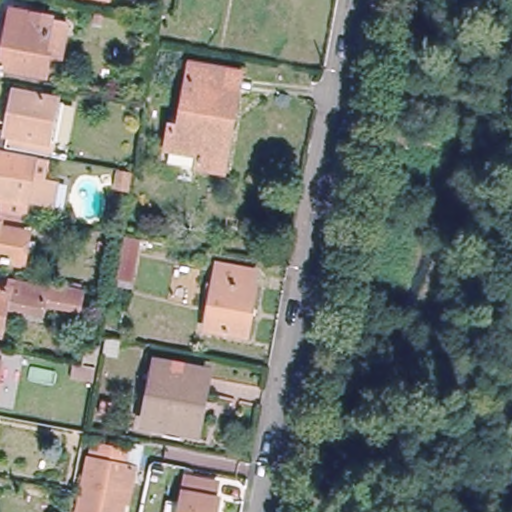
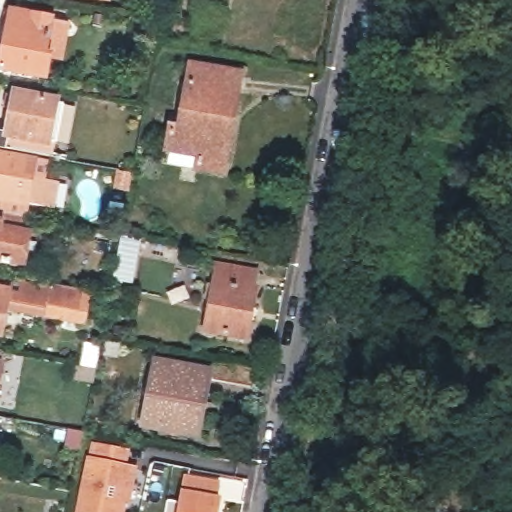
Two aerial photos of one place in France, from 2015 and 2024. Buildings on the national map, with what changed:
unchanged [(56,23),(49,58),(37,56),(32,78),(0,72),(0,13),(39,20),(56,23)]
unchanged [(187,161),(190,148),(159,142),(163,120),(176,122),(187,61),(235,70),(217,166),(187,161)]
unchanged [(55,145),(62,146),(60,159),(8,149),(19,96),(62,104),(55,145)]
unchanged [(24,178),(32,179),(28,205),(2,201),(0,214),(0,157),(26,161),(24,178)]
unchanged [(120,174),(131,176),(128,192),(117,190),(120,174)]
unchanged [(0,214),(19,218),(17,229),(14,245),(0,242),(0,214)]
unchanged [(141,240),(132,283),(115,279),(122,237),(141,240)]
unchanged [(4,261),(0,260),(0,246),(7,247),(4,261)]
unchanged [(245,289),(247,289),(237,339),(199,331),(210,265),(247,272),(245,289)]
unchanged [(72,315),(37,309),(35,320),(0,314),(0,284),(75,297),(72,315)]
unchanged [(71,379),(73,366),(82,368),(87,345),(102,348),(97,370),(95,384),(71,379)]
unchanged [(0,358),(1,358),(0,361),(0,358)]
unchanged [(150,366),(197,376),(187,432),(139,423),(150,366)]
unchanged [(97,463),(100,447),(129,454),(126,468),(132,469),(136,470),(131,502),(126,501),(123,512),(81,512),(91,462),(97,463)]
unchanged [(214,486),(212,501),(216,502),(214,512),(179,512),(185,480),(214,486)]

